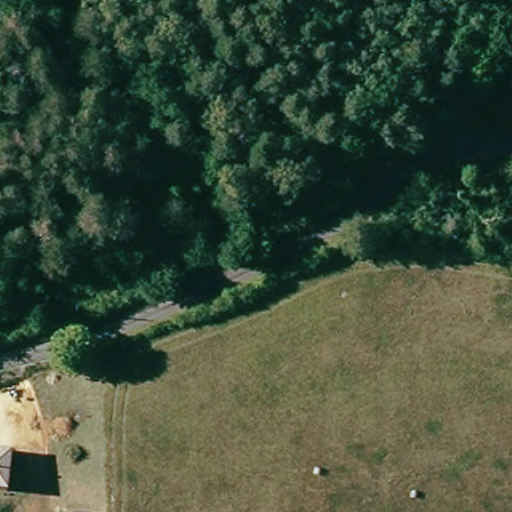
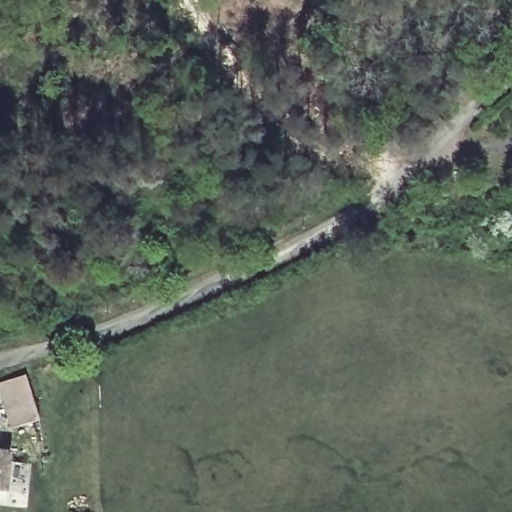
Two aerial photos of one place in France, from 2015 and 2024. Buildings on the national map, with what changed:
new [(25,376),(40,421),(11,430),(0,394),(0,384),(25,376)]
unchanged [(13,451),(10,491),(0,490),(0,450),(13,451)]

